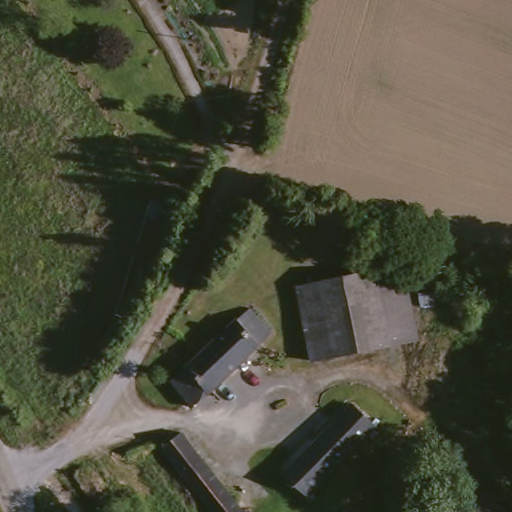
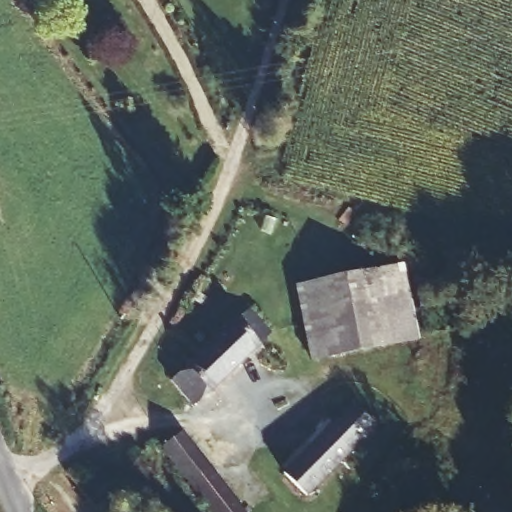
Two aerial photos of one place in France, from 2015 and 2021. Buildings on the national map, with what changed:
unchanged [(309,284),(394,263),(414,336),(328,361),(310,366),(291,289),(309,284)]
unchanged [(168,361),(220,317),(230,329),(243,319),(264,345),(197,397),(181,410),(162,384),(177,372),(168,361)]
unchanged [(369,427),(299,499),(276,477),(345,405),(369,427)]
unchanged [(222,492),(235,512),(208,512),(206,509),(159,441),(178,430),(222,492)]
unchanged [(415,512),(387,512),(382,470),(409,467),(415,512)]
unchanged [(500,512),(486,512),(492,505),(500,512)]

